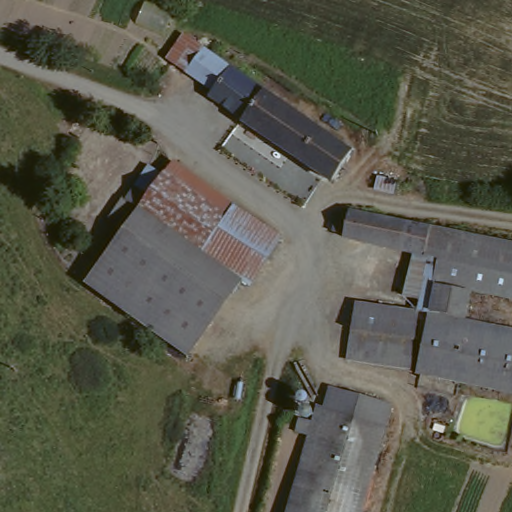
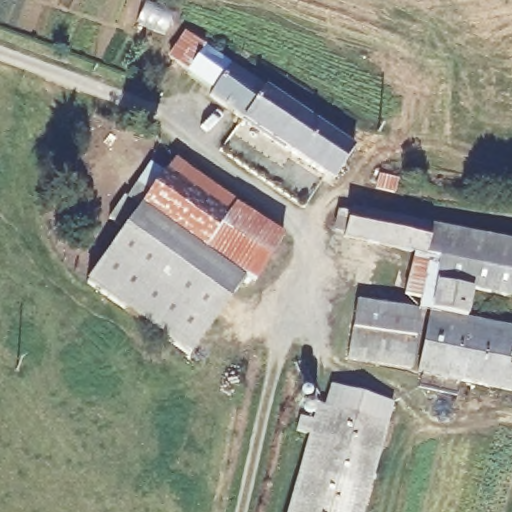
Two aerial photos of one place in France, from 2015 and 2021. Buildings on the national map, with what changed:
unchanged [(200,88),(203,83),(179,66),(195,41),(344,142),(325,171),(200,88)]
unchanged [(88,283),(125,234),(147,203),(133,193),(157,159),(172,169),(179,162),(285,232),(278,244),(256,276),(251,274),(221,312),(191,354),(88,283)]
unchanged [(381,178),(396,184),(392,195),(376,190),(381,178)]
unchanged [(396,214),(443,224),(438,255),(350,237),(352,229),(341,227),(344,208),(355,209),(356,207),(396,214)]
unchanged [(476,231),(512,240),(512,270),(446,256),(438,255),(443,224),(461,228),(476,231)]
unchanged [(512,270),(512,294),(478,287),(442,279),(446,256),(512,270)]
unchanged [(416,258),(435,262),(427,296),(408,292),(416,258)]
unchanged [(512,323),(512,387),(425,371),(427,360),(442,279),(478,287),(473,314),(512,323)]
unchanged [(350,355),(360,297),(423,308),(413,365),(350,355)]
unchanged [(316,411),(323,413),(326,407),(332,388),(389,407),(355,512),(281,512),(316,411)]

